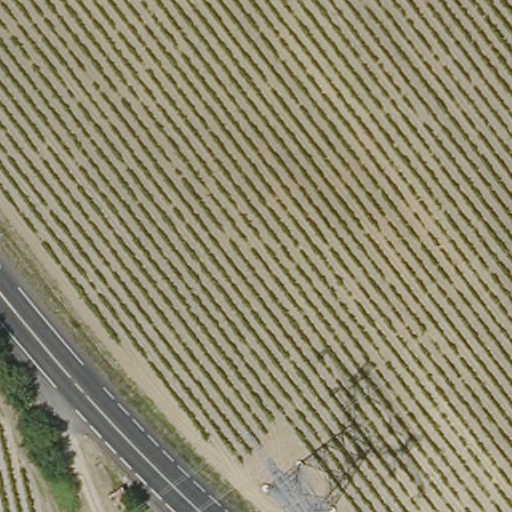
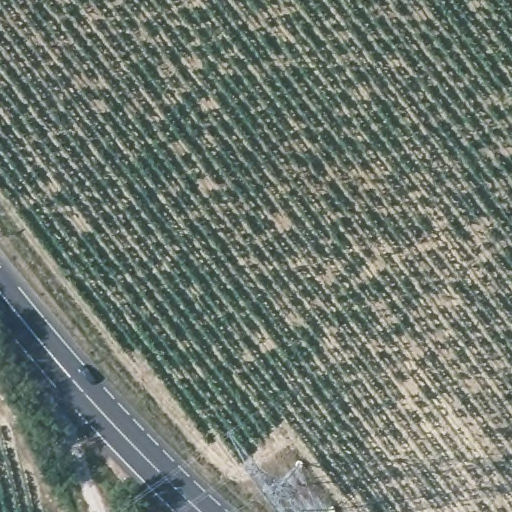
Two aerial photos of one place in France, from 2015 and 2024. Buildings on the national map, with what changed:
unchanged [(130,482),(141,496),(118,511),(112,494),(130,482)]

